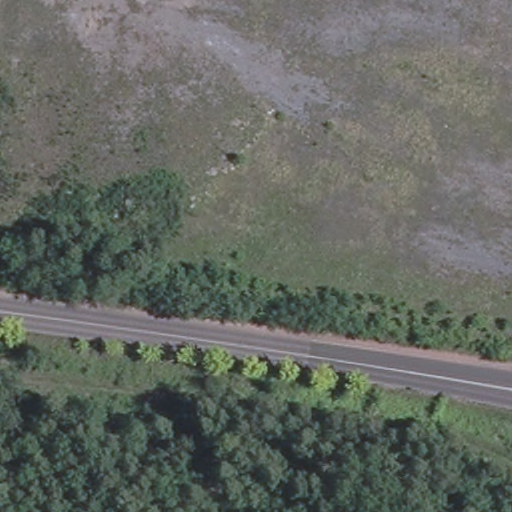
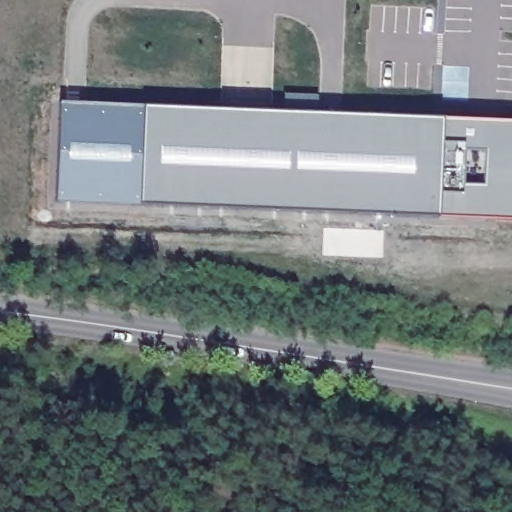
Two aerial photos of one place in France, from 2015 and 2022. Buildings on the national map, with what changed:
new [(144,104),(144,108),(438,120),(433,219),(139,205),(56,201),(61,103),(144,104)]
new [(438,120),(489,123),(485,222),(433,219),(438,120)]
new [(512,121),(512,222),(485,222),(485,218),(489,123),(489,120),(512,121)]

